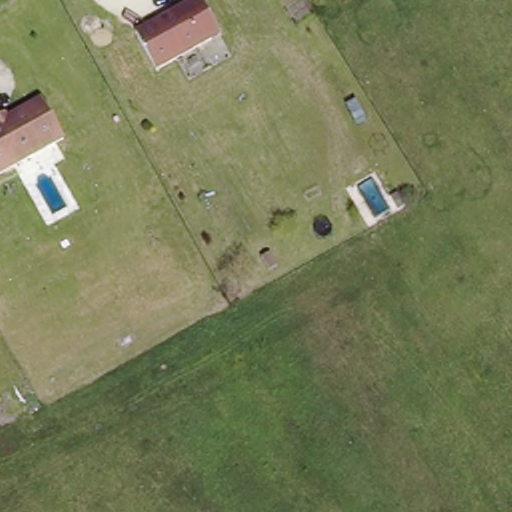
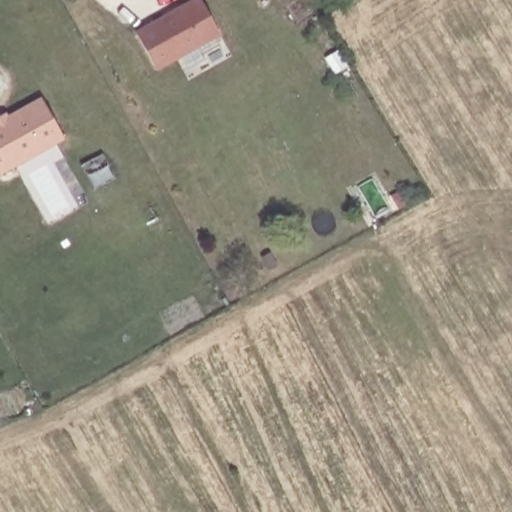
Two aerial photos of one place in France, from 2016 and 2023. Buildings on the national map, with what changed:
unchanged [(184,0),(205,0),(220,28),(156,63),(136,26),(184,0)]
unchanged [(4,111),(6,115),(41,96),(63,136),(0,171),(0,114),(4,111)]

